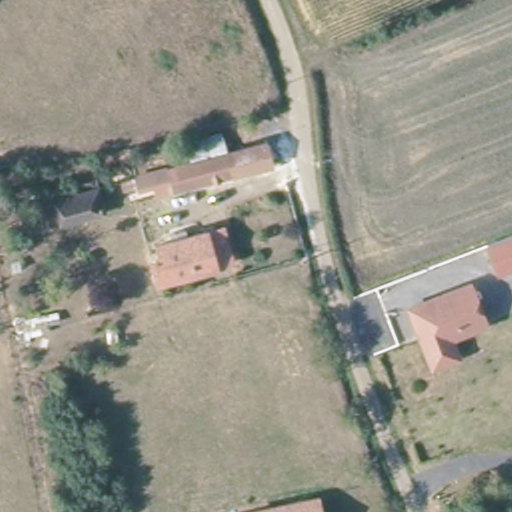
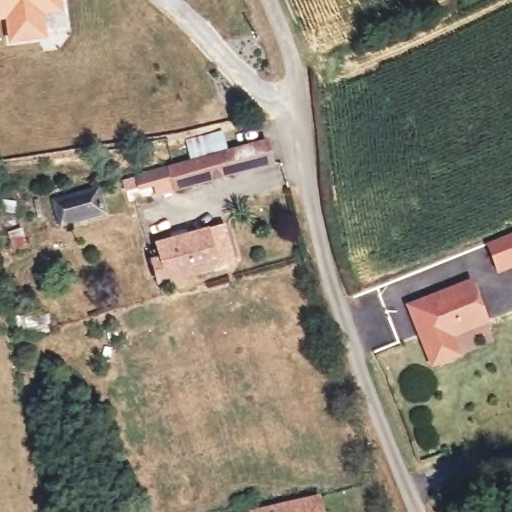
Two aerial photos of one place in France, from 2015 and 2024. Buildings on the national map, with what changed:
new [(47,40),(9,46),(5,21),(0,22),(0,0),(60,0),(61,12),(43,15),(47,40)]
unchanged [(276,154),(179,184),(176,178),(159,182),(155,174),(138,178),(137,169),(212,149),(269,130),(276,154)]
unchanged [(97,185),(105,207),(60,221),(53,198),(97,185)]
unchanged [(139,264),(150,261),(146,247),(160,243),(158,235),(174,231),(176,239),(194,234),(212,228),(221,262),(204,267),(145,285),(139,264)]
unchanged [(512,269),(498,274),(485,242),(512,233),(512,269)]
unchanged [(435,361),(431,349),(416,308),(436,300),(435,294),(476,279),(490,319),(454,332),(456,339),(460,351),(435,361)]
unchanged [(317,499),(320,512),(258,512),(317,499)]

